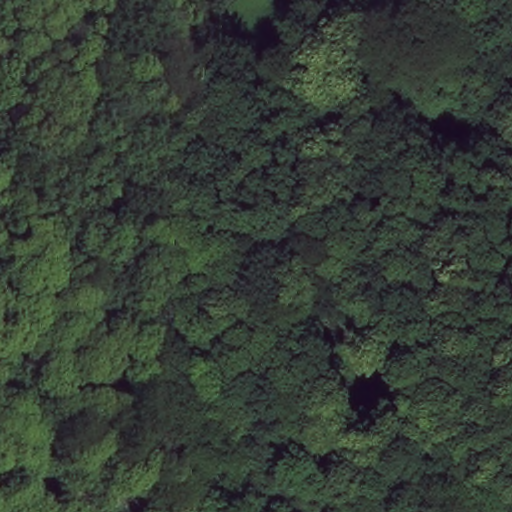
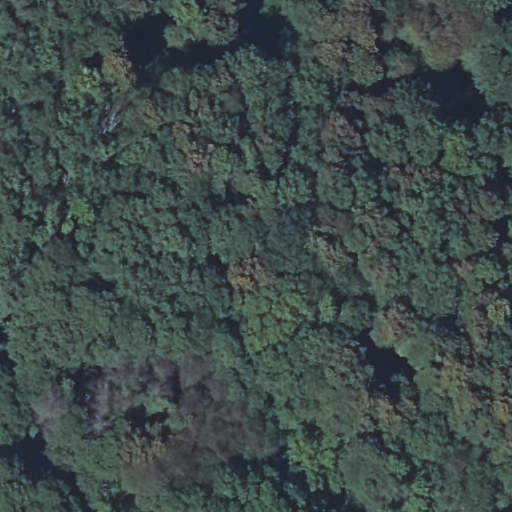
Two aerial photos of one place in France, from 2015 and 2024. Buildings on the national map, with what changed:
unchanged [(280,311),(312,290),(323,308),(291,328),(280,311)]

